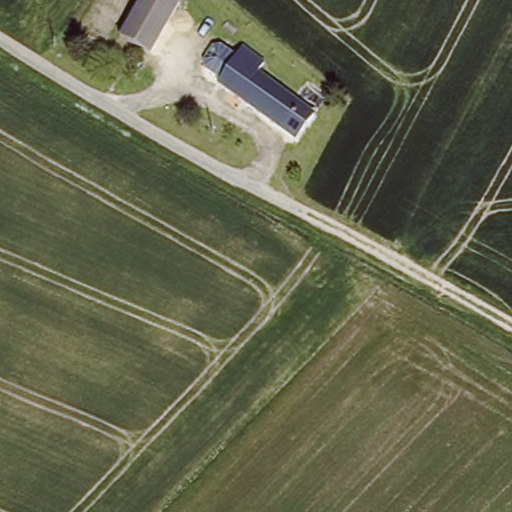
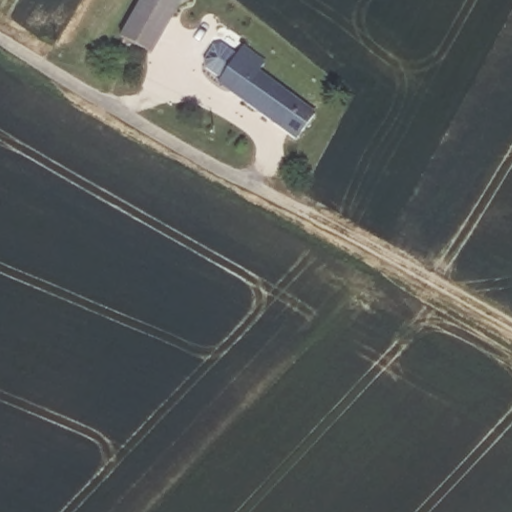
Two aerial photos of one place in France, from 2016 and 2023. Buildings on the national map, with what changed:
unchanged [(177,0),(183,4),(149,54),(120,34),(144,0),(177,0)]
unchanged [(293,127),(282,119),(280,122),(203,64),(219,44),(235,56),(245,42),(265,57),(255,71),(295,101),(307,109),(293,127)]

